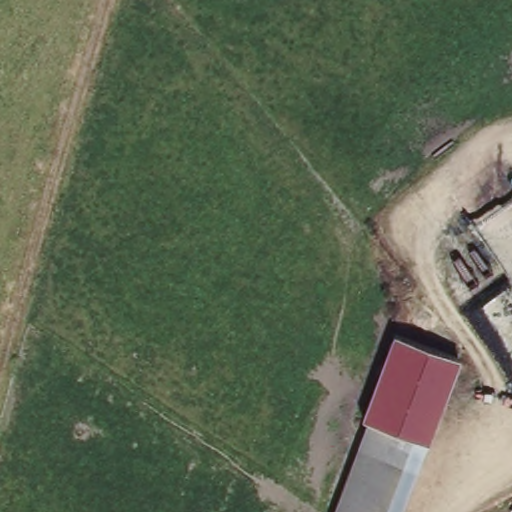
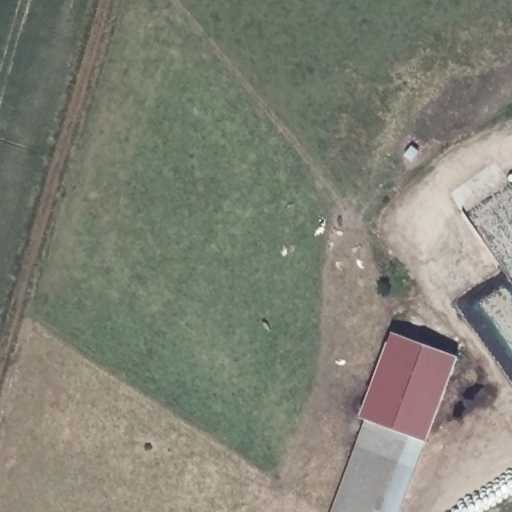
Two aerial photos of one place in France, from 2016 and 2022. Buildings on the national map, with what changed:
unchanged [(413,434),(371,418),(365,416),(396,331),(460,354),(429,440),(413,434)]
unchanged [(402,461),(360,446),(371,418),(413,434),(402,461)]
unchanged [(402,461),(403,462),(384,512),(335,512),(360,446),(402,461)]
unchanged [(384,512),(403,462),(418,468),(402,512),(384,512)]

